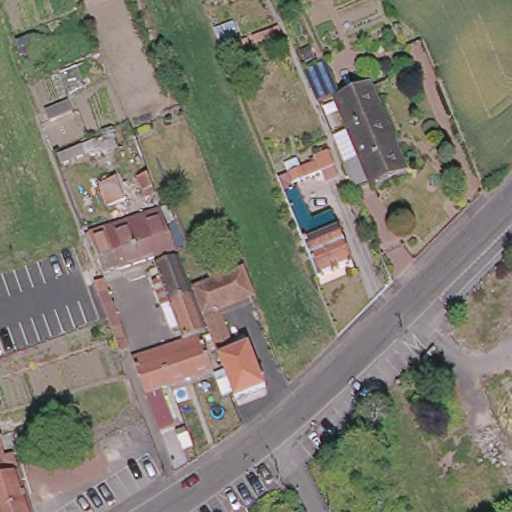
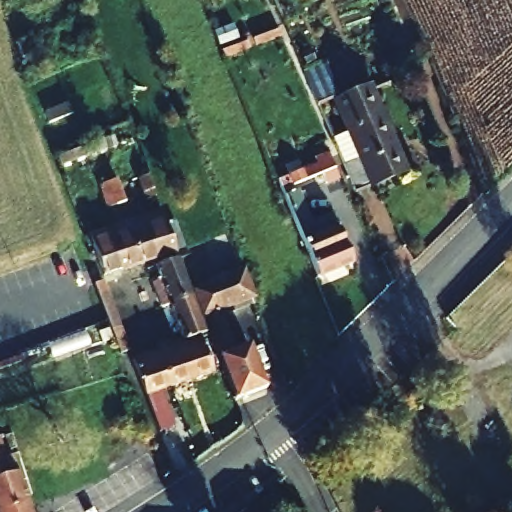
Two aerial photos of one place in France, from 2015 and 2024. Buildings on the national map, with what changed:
unchanged [(316,96),(313,90),(304,71),(326,62),(334,81),(336,87),(316,96)]
unchanged [(336,142),(353,135),(336,92),(367,78),(408,172),(358,193),(339,149),(336,142)]
unchanged [(318,165),(316,159),(330,153),(340,177),(328,182),(324,173),(295,184),(304,208),(308,206),(321,236),(341,228),(354,261),(320,276),(281,180),(318,165)]
unchanged [(113,272),(97,233),(115,226),(120,224),(134,219),(167,206),(182,246),(161,254),(149,258),(130,266),(124,267),(113,272)]
unchanged [(175,329),(166,304),(157,280),(166,277),(161,262),(183,254),(196,291),(211,329),(189,338),(184,325),(175,329)]
unchanged [(225,307),(241,350),(255,344),(271,386),(241,398),(200,290),(248,270),(258,294),(225,307)]
unchanged [(123,342),(119,330),(114,318),(110,307),(107,296),(102,282),(111,279),(116,293),(119,303),(123,315),(128,327),(132,339),(136,350),(127,353),(123,342)]
unchanged [(161,429),(154,408),(149,392),(137,357),(163,349),(176,345),(205,335),(216,370),(173,384),(159,389),(164,404),(169,403),(176,424),(161,429)]
unchanged [(134,431),(139,445),(126,450),(128,458),(119,462),(111,440),(134,431)]
unchanged [(0,435),(1,435),(9,456),(19,453),(23,468),(0,477),(0,435)]
unchanged [(0,477),(23,468),(33,499),(0,510),(0,477)]
unchanged [(35,503),(38,512),(0,512),(0,510),(33,499),(35,503)]

